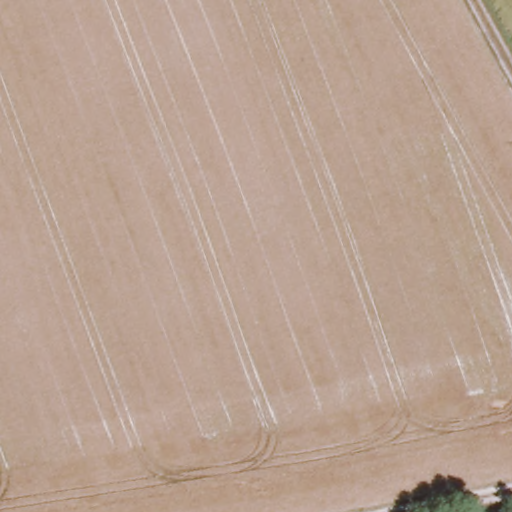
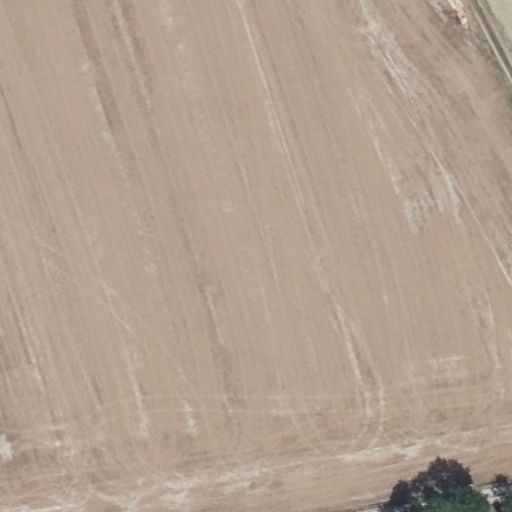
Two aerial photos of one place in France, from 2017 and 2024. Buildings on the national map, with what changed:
[]

